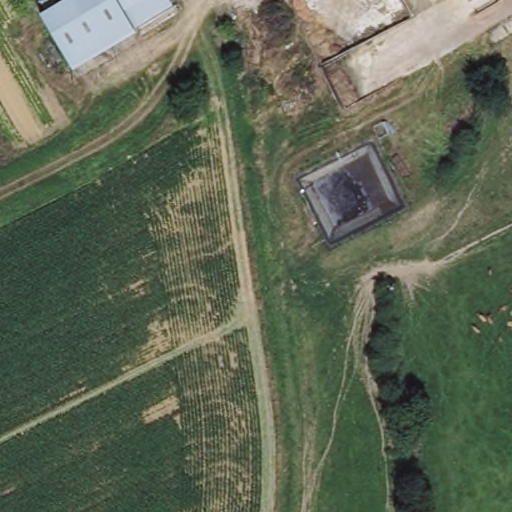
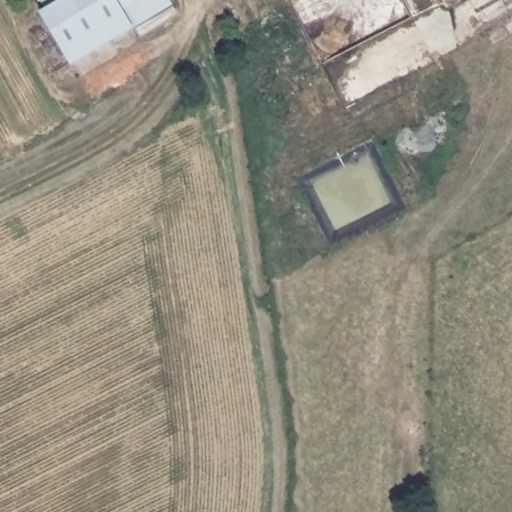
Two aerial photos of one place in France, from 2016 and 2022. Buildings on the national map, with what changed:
unchanged [(65,62),(38,19),(35,14),(60,0),(163,0),(166,6),(132,25),(65,62)]

